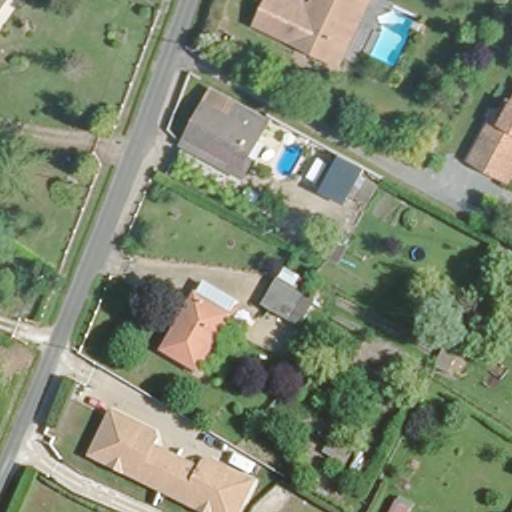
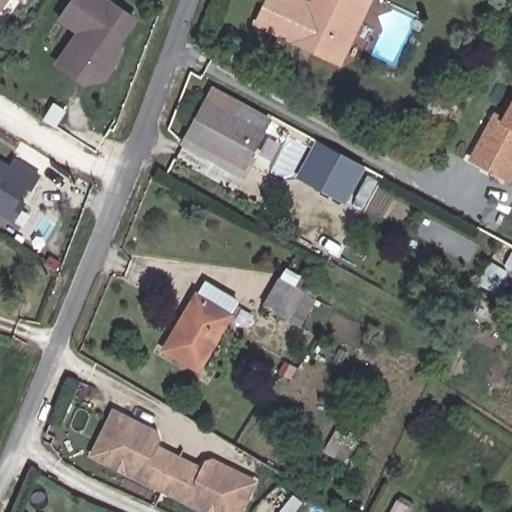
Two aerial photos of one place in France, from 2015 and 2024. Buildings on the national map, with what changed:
new [(137,17),(120,46),(122,48),(109,79),(81,85),(52,64),(74,31),(56,19),(71,0),(113,0),(137,17)]
unchanged [(341,67),(250,24),(262,0),(373,0),(341,67)]
unchanged [(466,160),(490,115),(499,98),(508,102),(512,94),(512,141),(507,150),(512,153),(512,163),(503,179),(466,160)]
unchanged [(185,128),(204,96),(230,112),(238,100),(265,116),(239,160),(185,128)]
unchanged [(299,179),(320,144),(361,171),(380,185),(365,207),(348,197),(343,205),(299,179)]
new [(10,164),(14,157),(40,175),(30,191),(26,188),(20,199),(25,202),(12,222),(0,214),(0,158),(10,164)]
unchanged [(290,319),(266,305),(285,277),(307,292),(290,319)]
unchanged [(200,281),(235,303),(205,349),(200,357),(165,336),(170,328),(200,281)]
unchanged [(237,502),(232,512),(213,512),(101,460),(110,443),(102,437),(112,415),(159,436),(152,447),(201,470),(207,459),(256,484),(248,506),(237,502)]

